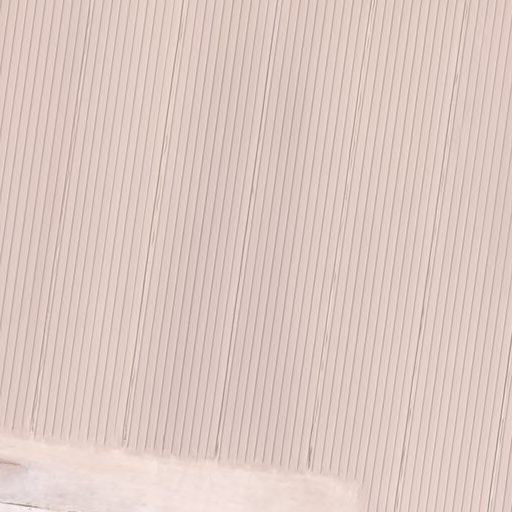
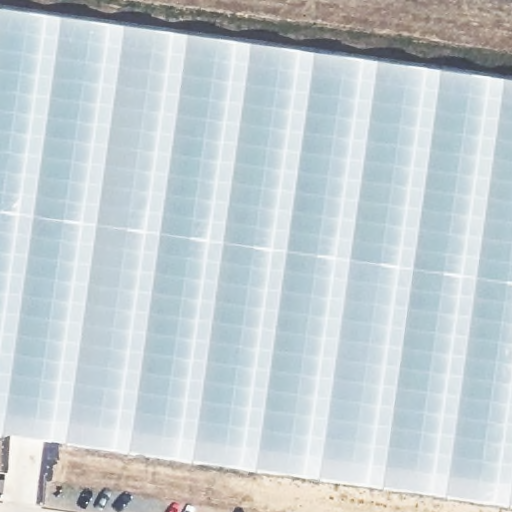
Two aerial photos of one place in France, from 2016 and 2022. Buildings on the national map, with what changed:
new [(512,81),(512,505),(0,434),(0,8),(512,81)]

